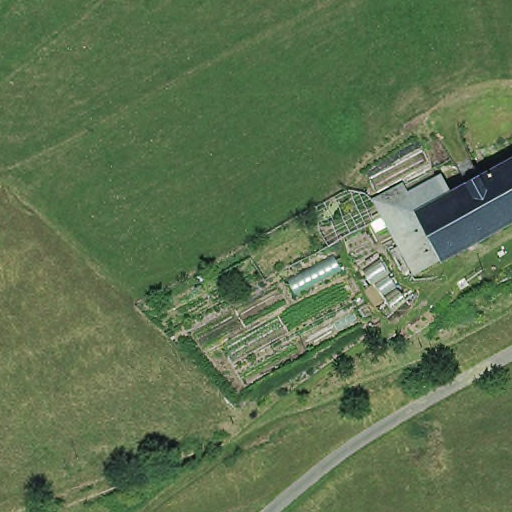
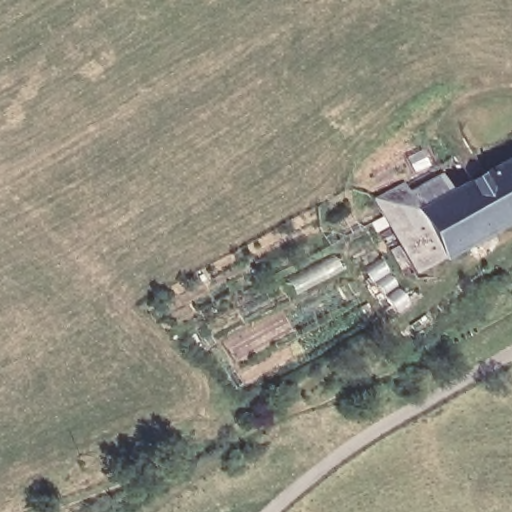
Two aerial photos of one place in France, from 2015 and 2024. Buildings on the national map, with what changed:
unchanged [(416,214),(446,199),(512,162),(512,221),(441,260),(416,214)]
unchanged [(372,203),(431,170),(446,199),(416,214),(388,230),(372,203)]
unchanged [(387,253),(397,248),(388,230),(416,214),(441,260),(412,275),(408,267),(397,273),(387,253)]

